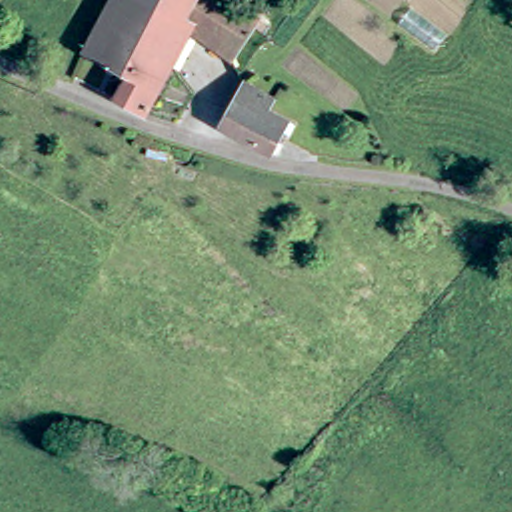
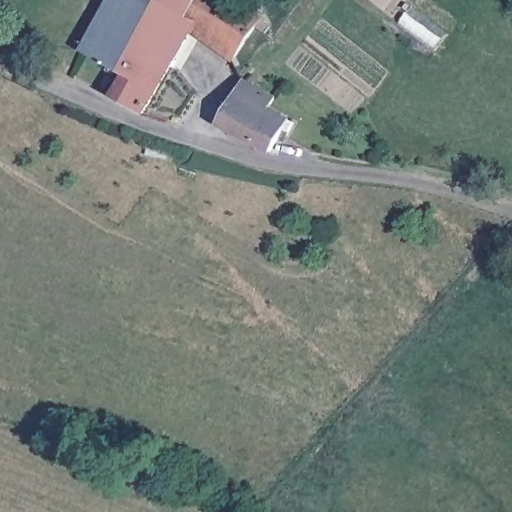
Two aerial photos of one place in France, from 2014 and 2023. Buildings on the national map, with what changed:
unchanged [(236,45),(196,22),(136,106),(128,103),(108,91),(120,74),(84,49),(88,41),(115,0),(205,0),(248,28),(236,45)]
unchanged [(276,100),(270,112),(294,123),(276,154),(228,129),(226,128),(250,83),(253,85),(276,100)]

